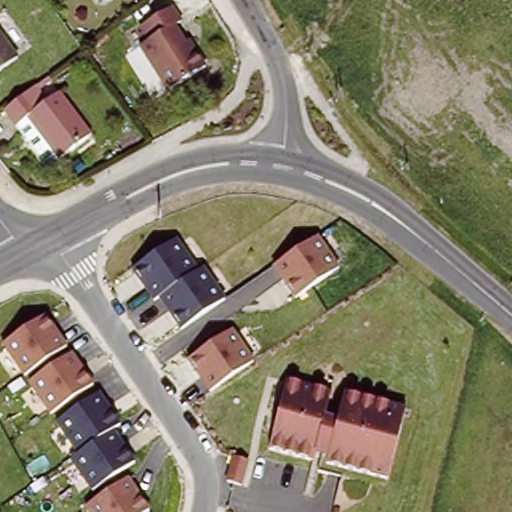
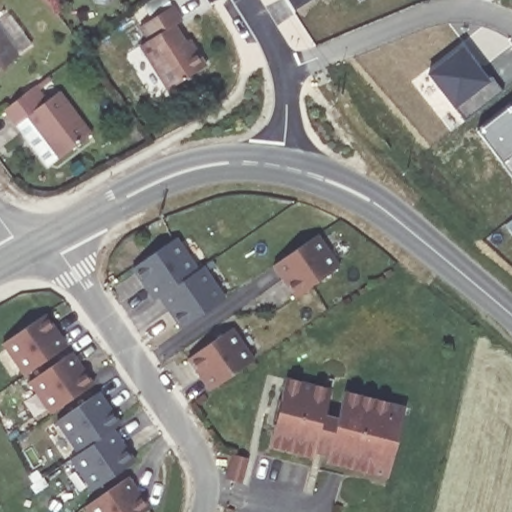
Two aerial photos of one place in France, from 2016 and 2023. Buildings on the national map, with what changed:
unchanged [(172,86),(141,39),(151,31),(145,24),(175,3),(185,18),(180,24),(194,44),(197,43),(209,64),(172,86)]
unchanged [(0,72),(0,37),(17,60),(0,72)]
new [(465,120),(456,110),(455,110),(427,75),(462,47),(477,69),(482,65),(502,93),(465,120)]
unchanged [(24,89),(32,100),(53,86),(85,133),(55,155),(24,114),(14,120),(2,105),(24,89)]
unchanged [(318,233),(339,265),(292,296),(270,266),(318,233)]
unchanged [(160,297),(150,302),(132,273),(174,241),(195,272),(202,267),(225,298),(179,329),(160,297)]
unchanged [(47,315),(66,345),(21,375),(0,345),(47,315)]
unchanged [(185,360),(232,327),(255,360),(205,392),(185,360)]
unchanged [(27,383),(70,353),(92,384),(50,413),(27,383)]
unchanged [(405,398),(387,477),(267,445),(288,375),(405,398)]
unchanged [(97,393),(119,423),(110,428),(133,460),(90,490),(70,460),(77,455),(53,424),(97,393)]
unchanged [(149,507),(143,512),(85,512),(84,509),(129,477),(149,507)]

